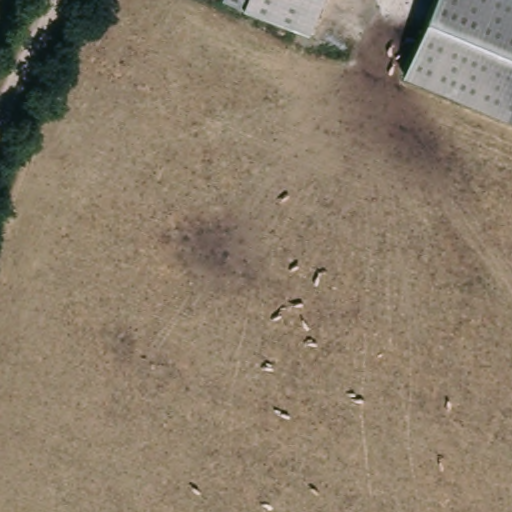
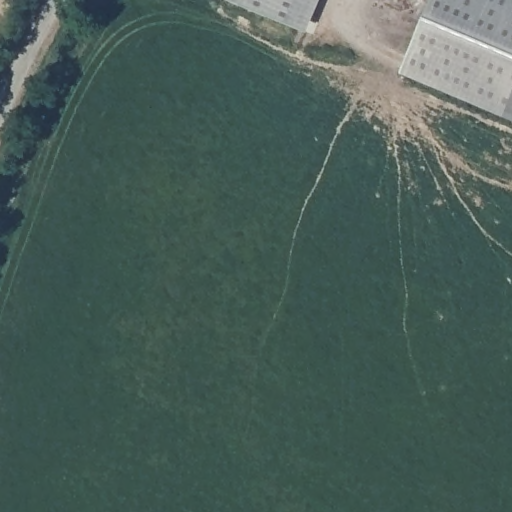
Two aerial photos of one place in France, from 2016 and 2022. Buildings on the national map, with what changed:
unchanged [(310,33),(234,0),(324,0),(310,33)]
unchanged [(402,73),(434,0),(512,0),(512,124),(402,73)]

